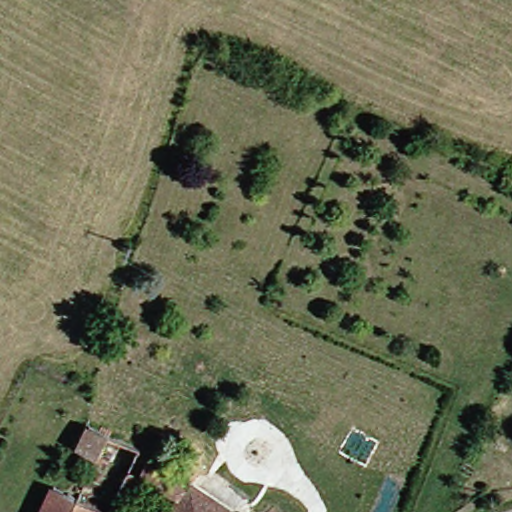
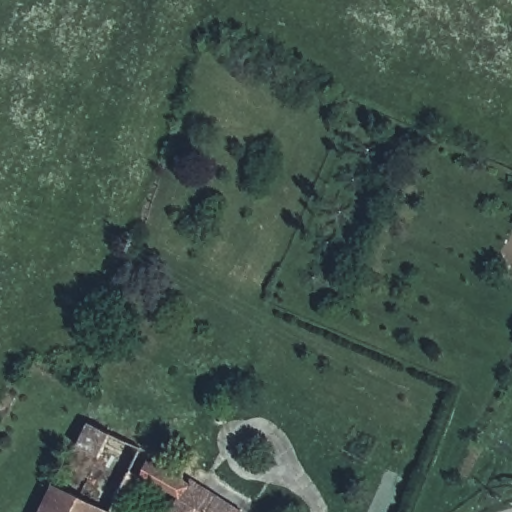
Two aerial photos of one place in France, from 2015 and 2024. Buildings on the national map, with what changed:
unchanged [(86,420),(118,437),(105,462),(76,446),(86,420)]
unchanged [(132,480),(141,462),(185,487),(228,512),(165,512),(173,499),(132,480)]
unchanged [(112,504),(122,475),(132,480),(119,509),(112,504)]
unchanged [(64,512),(38,512),(49,487),(71,497),(64,512)]
unchanged [(100,511),(99,512),(64,512),(71,497),(100,511)]

